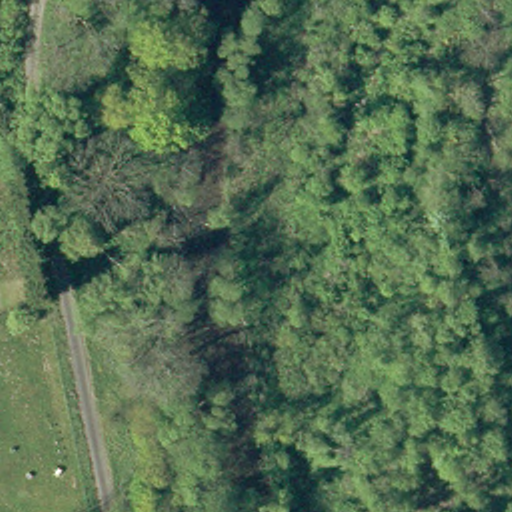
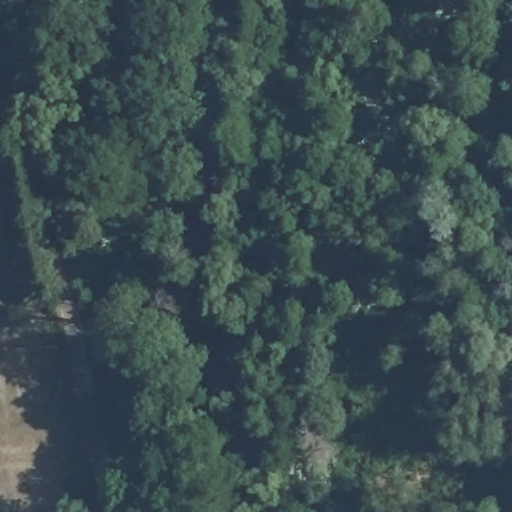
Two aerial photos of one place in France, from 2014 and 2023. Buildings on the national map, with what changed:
[]

